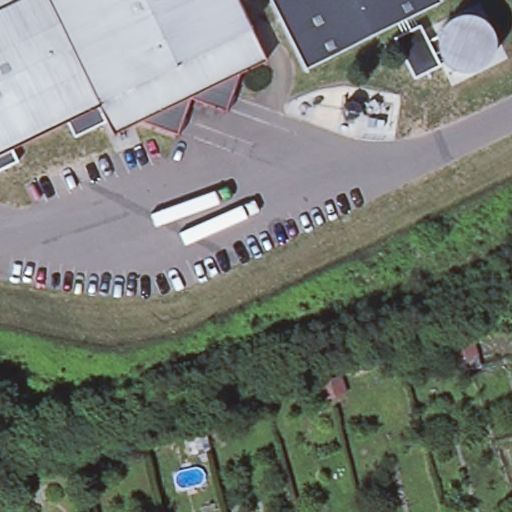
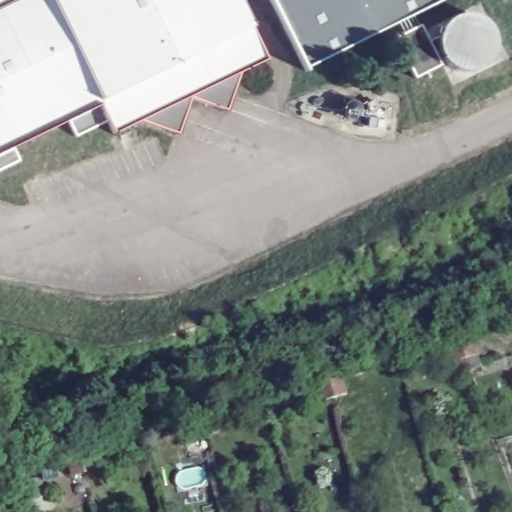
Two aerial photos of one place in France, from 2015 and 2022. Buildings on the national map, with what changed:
unchanged [(250,33),(265,65),(239,78),(189,102),(170,111),(139,126),(112,139),(98,111),(0,158),(0,0),(234,0),(250,33)]
unchanged [(439,6),(305,73),(306,75),(305,76),(266,0),(436,0),(439,6)]
unchanged [(180,133),(177,139),(139,126),(170,111),(189,102),(239,78),(225,116),(190,103),(180,133)]
unchanged [(469,368),(466,358),(455,361),(450,343),(460,340),(471,336),(477,354),(480,365),(469,368)]
unchanged [(318,381),(330,378),(340,375),(346,393),(335,396),(324,400),(318,381)]
unchanged [(191,419),(202,416),(213,413),(218,431),(207,434),(196,437),(191,419)]
unchanged [(76,453),(87,450),(93,468),(82,472),(71,475),(65,457),(76,453)]

